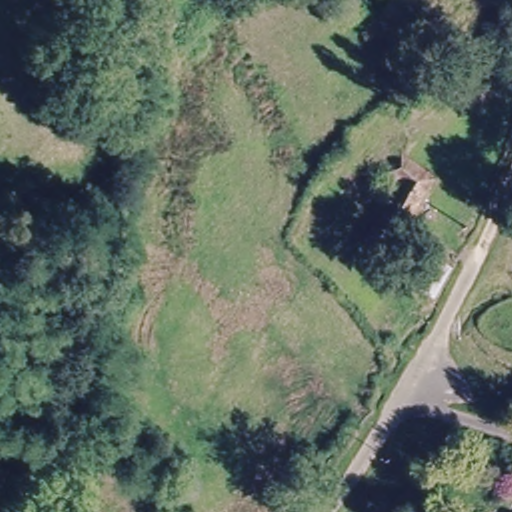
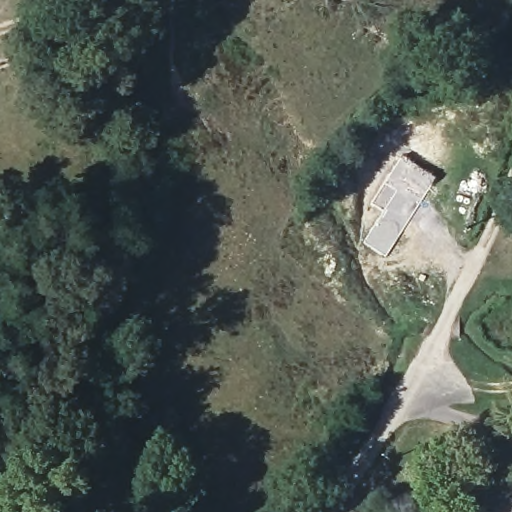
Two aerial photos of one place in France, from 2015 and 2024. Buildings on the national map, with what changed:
unchanged [(365,237),(393,192),(385,184),(400,156),(436,181),(426,197),(392,252),(386,250),(365,237)]
unchanged [(433,297),(405,282),(425,250),(447,263),(433,297)]

